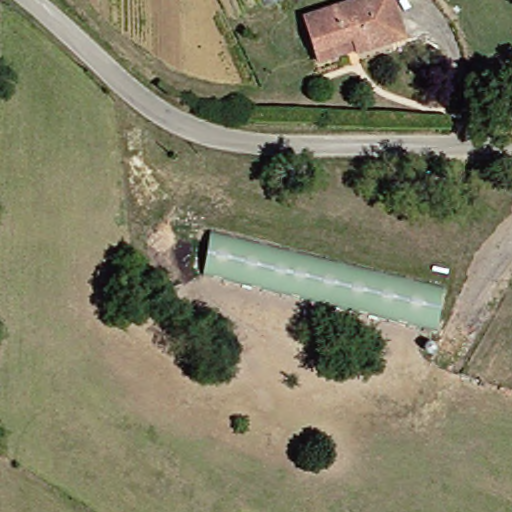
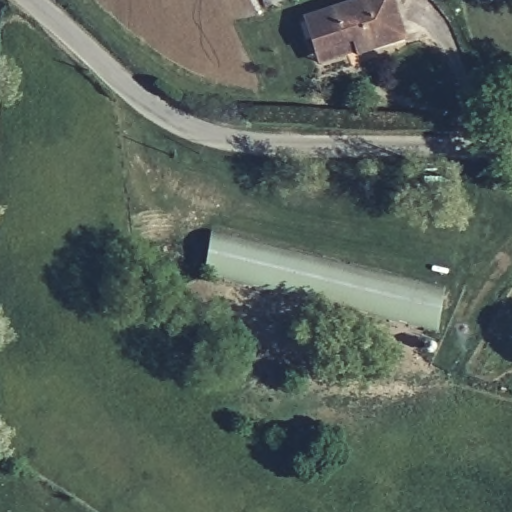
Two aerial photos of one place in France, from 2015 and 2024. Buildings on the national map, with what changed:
unchanged [(299,25),(371,0),(389,0),(402,41),(355,57),(354,56),(314,68),(311,60),(299,25)]
unchanged [(208,238),(442,298),(431,333),(204,278),(208,238)]

